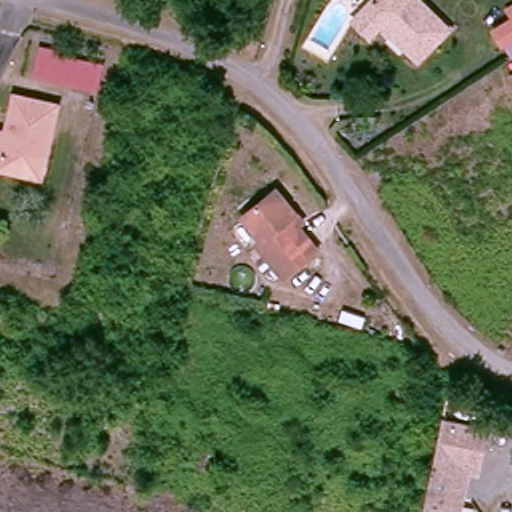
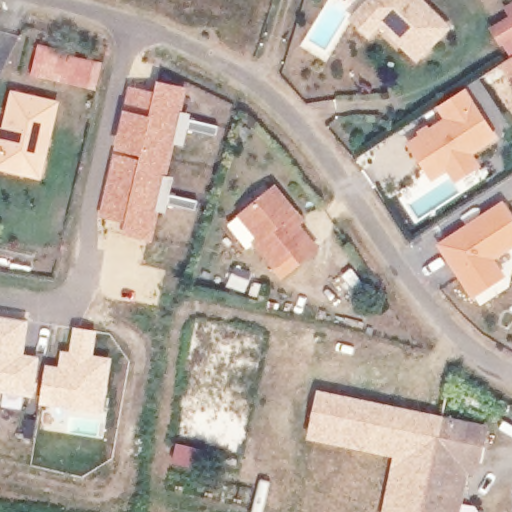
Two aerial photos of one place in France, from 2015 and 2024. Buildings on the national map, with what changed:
unchanged [(382,21),(371,32),(353,16),(369,0),(424,0),(449,25),(422,52),(418,56),(382,21)]
unchanged [(498,50),(488,35),(506,23),(501,15),(512,7),(512,41),(498,50)]
unchanged [(66,56),(101,67),(95,88),(31,70),(40,41),(64,47),(66,56)]
new [(127,85),(153,91),(156,81),(186,87),(181,112),(192,114),(191,118),(219,125),(215,137),(187,131),(183,147),(174,145),(167,175),(174,177),(170,194),(198,201),(195,212),(167,205),(165,214),(157,212),(151,241),(120,234),(123,222),(97,216),(127,85)]
new [(447,172),(432,182),(408,144),(445,120),(437,108),(467,90),(498,138),(473,156),(481,167),(455,184),(447,172)]
unchanged [(0,127),(7,129),(16,97),(56,110),(46,142),(34,181),(0,170),(0,127)]
unchanged [(283,273),(260,239),(250,246),(235,223),(249,213),(247,211),(282,187),(300,212),(307,222),(302,226),(319,250),(283,273)]
new [(437,246),(504,202),(512,214),(512,248),(495,260),(505,277),(472,299),(437,246)]
new [(23,353),(39,357),(33,397),(24,396),(21,410),(0,406),(0,316),(27,321),(23,353)]
new [(45,363),(57,366),(61,349),(69,350),(72,326),(97,330),(94,354),(112,357),(103,412),(39,404),(45,363)]
new [(308,439),(318,391),(441,417),(440,420),(417,512),(384,512),(393,457),(308,439)]
unchanged [(473,474),(463,472),(453,512),(417,512),(440,420),(484,432),(476,466),(473,474)]

